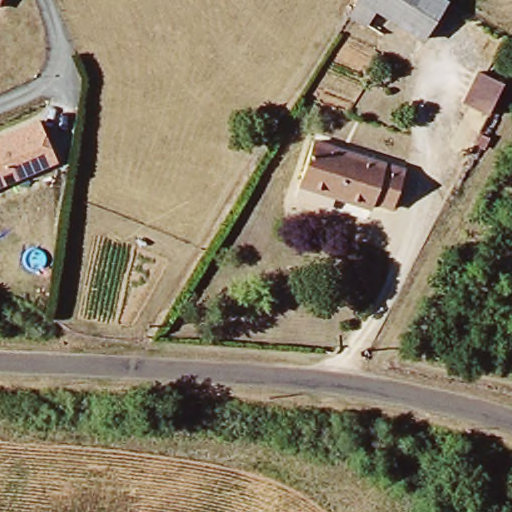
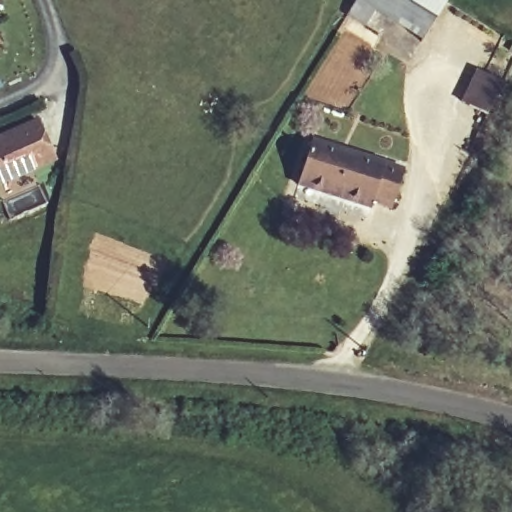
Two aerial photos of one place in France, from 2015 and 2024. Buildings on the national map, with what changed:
unchanged [(2,0),(0,5),(0,0),(2,0)]
unchanged [(371,8),(363,23),(347,14),(356,0),(438,0),(417,33),(371,8)]
unchanged [(499,78),(481,114),(465,106),(484,69),(499,78)]
unchanged [(39,121),(58,162),(0,188),(0,138),(39,121)]
unchanged [(395,212),(377,206),(374,216),(294,190),(313,136),(410,168),(395,212)]

